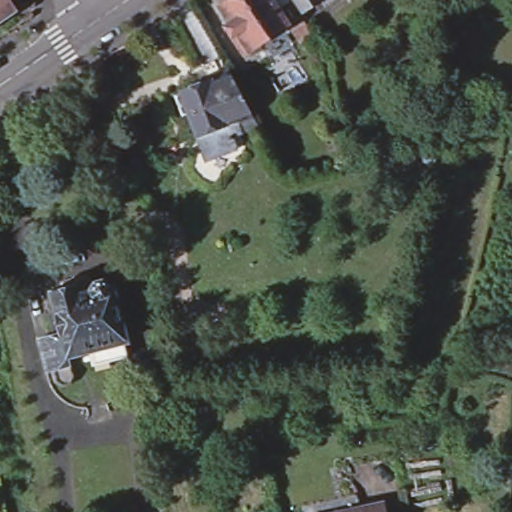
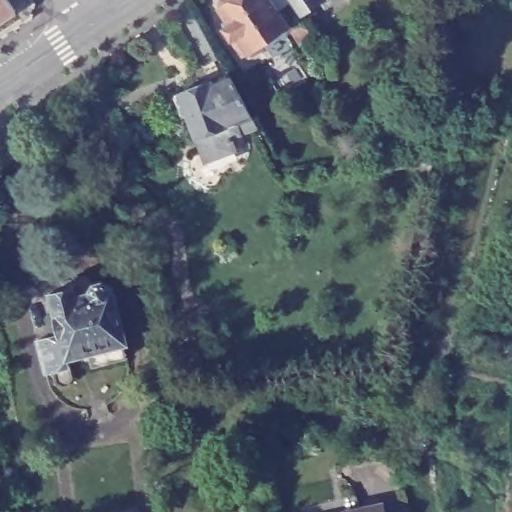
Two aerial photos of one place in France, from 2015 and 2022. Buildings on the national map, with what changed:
unchanged [(0,17),(0,0),(8,0),(14,9),(0,17)]
unchanged [(283,19),(246,44),(245,42),(238,47),(226,30),(225,31),(214,14),(221,10),(215,0),(276,0),(273,2),(283,19)]
unchanged [(293,0),(311,0),(299,8),(293,0)]
unchanged [(195,15),(219,57),(203,67),(180,25),(195,15)]
unchanged [(310,30),(296,40),(288,27),(302,18),(310,30)]
unchanged [(204,162),(192,142),(179,120),(174,122),(164,105),(170,102),(168,98),(213,74),(237,117),(229,121),(235,131),(225,137),(231,147),(204,162)]
unchanged [(156,253),(162,283),(147,287),(141,256),(156,253)]
unchanged [(61,382),(53,383),(47,377),(45,365),(39,366),(33,332),(50,330),(47,311),(52,311),(49,287),(73,283),(74,292),(87,290),(91,281),(102,280),(110,284),(110,287),(113,287),(122,343),(119,343),(121,360),(86,366),(83,350),(62,353),(63,362),(65,373),(61,382)]
unchanged [(158,458),(156,443),(156,436),(170,435),(171,442),(173,457),(158,458)]
unchanged [(379,503),(380,512),(339,512),(379,503)]

